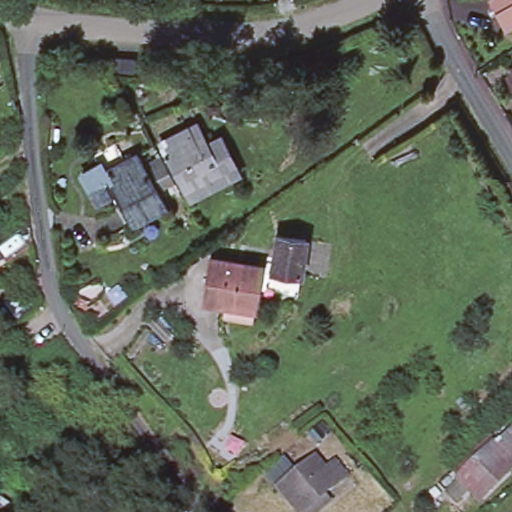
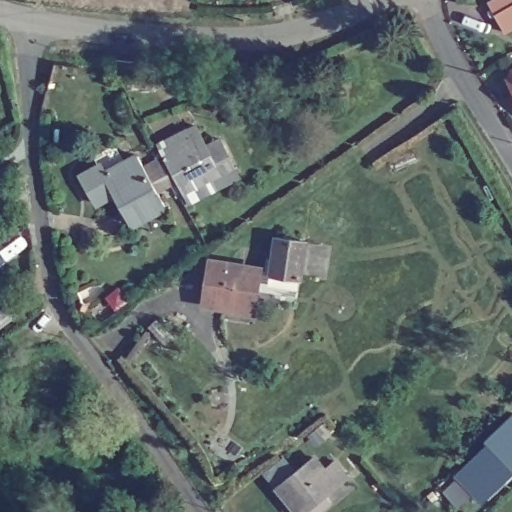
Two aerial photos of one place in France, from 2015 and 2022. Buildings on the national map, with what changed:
unchanged [(490,0),(512,0),(512,28),(505,32),(487,1),(490,0)]
unchanged [(507,83),(508,76),(512,73),(512,92),(507,83)]
unchanged [(165,148),(202,129),(215,154),(217,156),(212,159),(220,175),(189,192),(165,148)]
unchanged [(217,156),(215,154),(227,148),(243,178),(195,204),(189,192),(220,175),(212,159),(217,156)]
unchanged [(139,228),(130,212),(122,196),(102,206),(87,176),(107,166),(111,174),(143,157),(163,196),(172,211),(139,228)]
unchanged [(302,246),(296,281),(267,276),(272,241),(302,246)]
unchanged [(255,274),(250,313),(200,306),(205,267),(255,274)]
unchanged [(509,425),(512,428),(512,456),(506,462),(512,468),(512,475),(477,508),(469,497),(456,509),(442,491),(509,425)]
unchanged [(265,474),(284,458),(299,474),(281,487),(277,490),(265,474)]
unchanged [(321,512),(295,512),(277,490),(314,462),(323,474),(335,464),(347,479),(320,501),(326,509),(321,512)]

